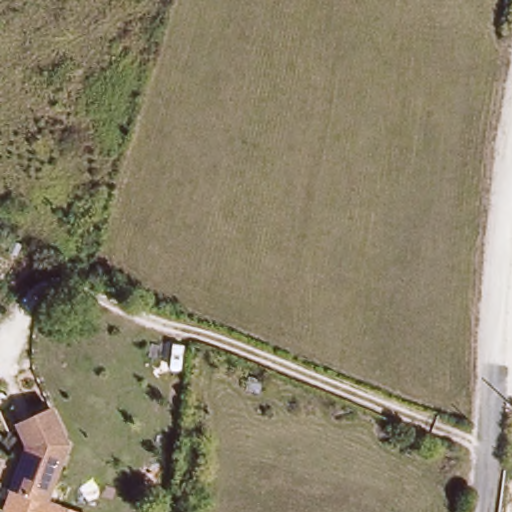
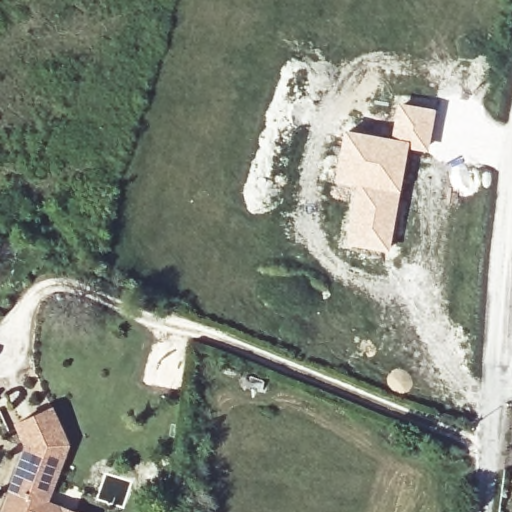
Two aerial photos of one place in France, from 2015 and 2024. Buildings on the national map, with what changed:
new [(397,100),(437,107),(428,151),(409,147),(410,140),(391,135),(397,100)]
new [(345,128),(391,135),(410,140),(409,147),(390,251),(342,244),(353,188),(335,183),(345,128)]
unchanged [(8,487),(26,443),(16,420),(51,405),(67,443),(43,501),(8,487)]
unchanged [(81,512),(0,512),(0,509),(8,487),(43,501),(44,498),(81,512)]

